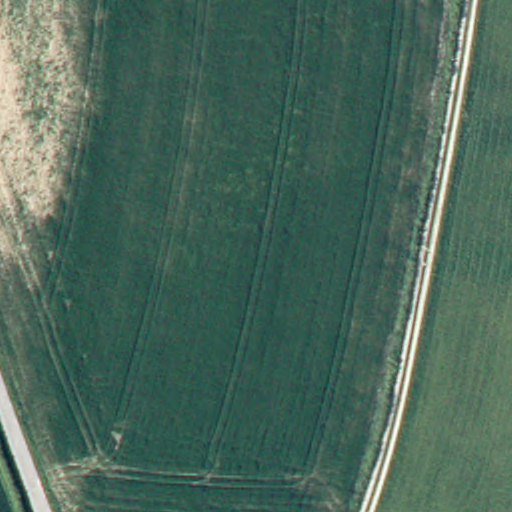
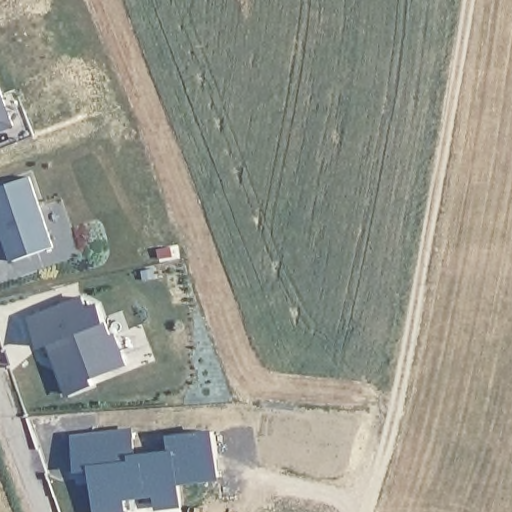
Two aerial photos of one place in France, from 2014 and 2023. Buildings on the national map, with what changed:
new [(11,123),(0,95),(13,90),(31,134),(0,147),(0,128),(11,123)]
new [(11,123),(0,128),(0,95),(11,123)]
new [(30,177),(54,247),(14,261),(0,221),(0,187),(30,177)]
new [(129,365),(95,378),(96,384),(69,395),(49,345),(42,348),(29,318),(83,296),(88,305),(99,301),(107,322),(112,335),(118,332),(129,365)]
new [(129,429),(133,455),(171,451),(170,435),(212,430),(218,476),(176,481),(179,503),(158,506),(156,492),(121,496),(123,510),(108,512),(96,512),(90,467),(75,468),(71,437),(129,429)]

